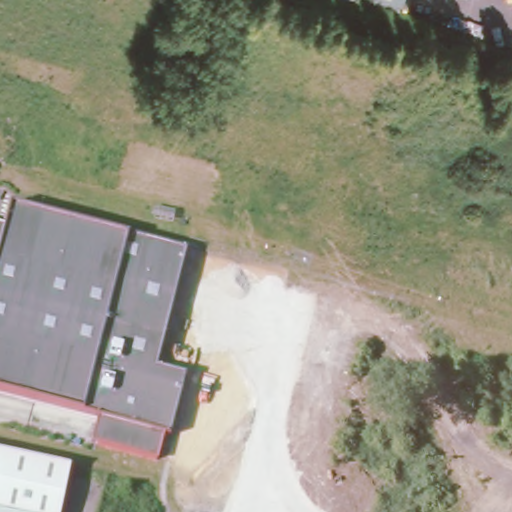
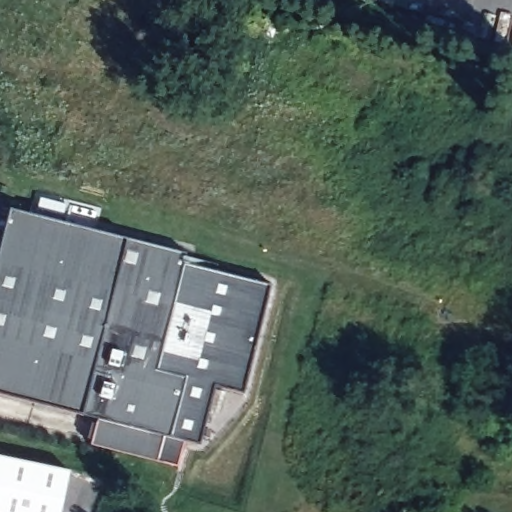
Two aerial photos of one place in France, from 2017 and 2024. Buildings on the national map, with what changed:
unchanged [(12,209),(124,238),(185,251),(182,264),(155,368),(183,375),(168,436),(163,434),(157,461),(92,444),(98,419),(0,393),(0,229),(3,230),(12,209)]
new [(273,286),(245,395),(213,386),(200,442),(184,440),(176,467),(157,461),(163,434),(168,436),(183,375),(155,368),(182,264),(273,286)]
unchanged [(59,512),(0,512),(0,456),(68,472),(59,512)]

